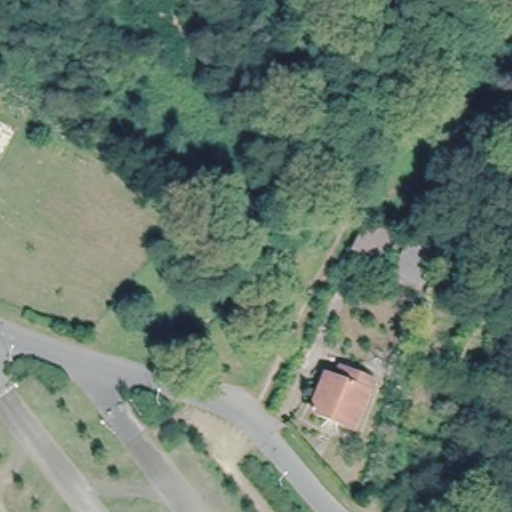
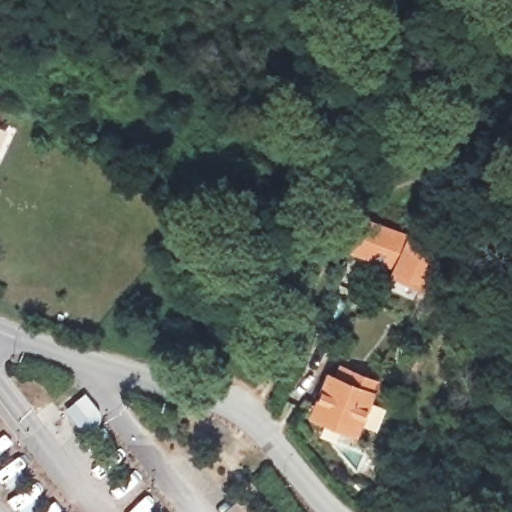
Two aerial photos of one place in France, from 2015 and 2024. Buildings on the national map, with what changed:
unchanged [(404,244),(391,273),(353,256),(366,226),(404,244)]
unchanged [(436,259),(420,292),(393,278),(409,246),(436,259)]
unchanged [(328,378),(337,382),(341,370),(374,383),(354,432),(313,415),(328,378)]

